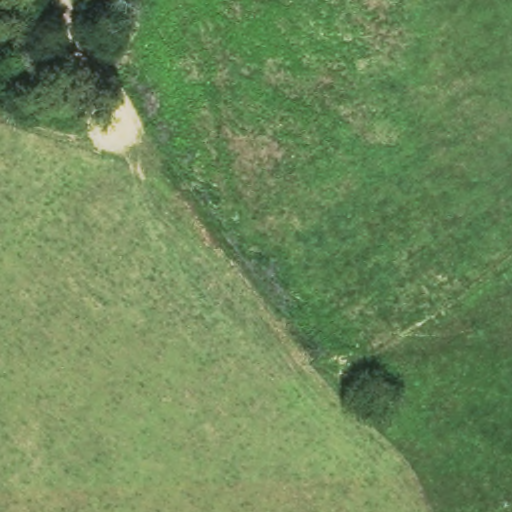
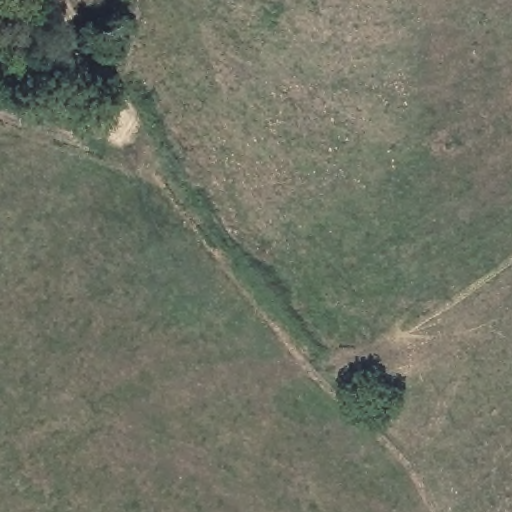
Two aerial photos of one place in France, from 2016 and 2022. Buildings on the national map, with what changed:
[]

